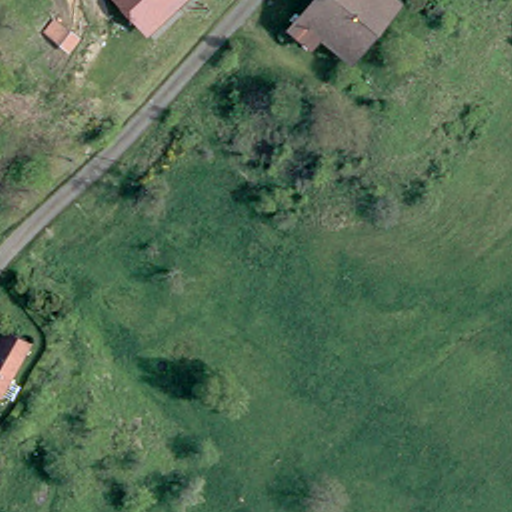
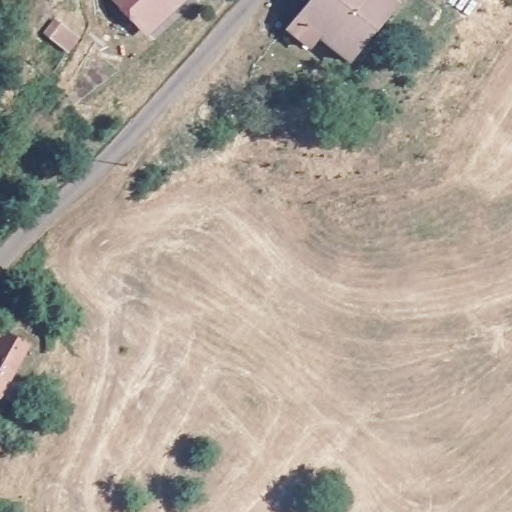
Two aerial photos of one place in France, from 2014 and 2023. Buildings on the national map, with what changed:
unchanged [(110,0),(188,0),(143,39),(110,0)]
unchanged [(321,38),(304,59),(284,44),(316,0),(395,0),(351,60),(321,38)]
unchanged [(29,346),(0,391),(0,338),(4,331),(29,346)]

